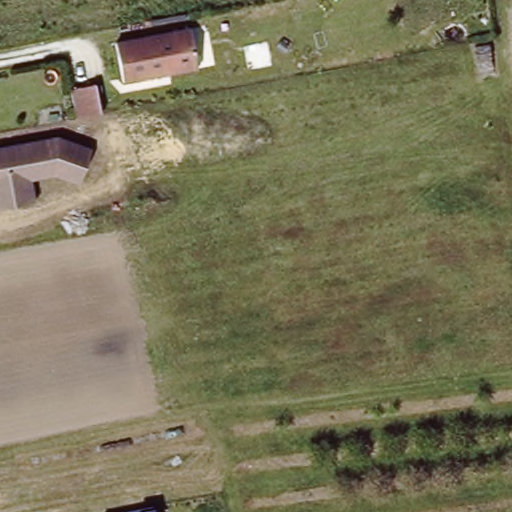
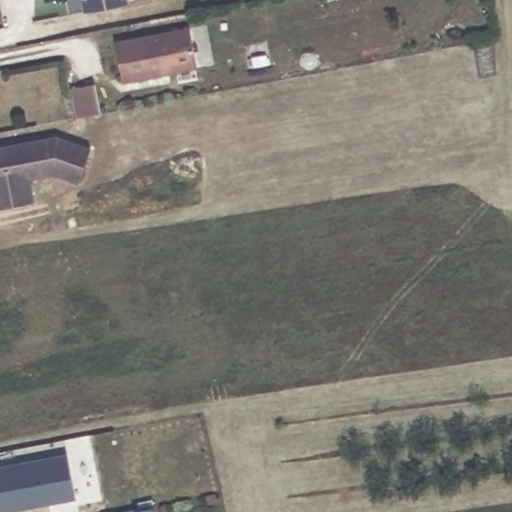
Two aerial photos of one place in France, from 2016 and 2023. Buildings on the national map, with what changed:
new [(88,12),(85,0),(130,0),(131,4),(88,12)]
unchanged [(196,62),(121,76),(113,38),(188,23),(196,62)]
unchanged [(74,118),(68,89),(93,84),(98,114),(74,118)]
unchanged [(55,136),(90,150),(76,184),(55,174),(30,180),(33,201),(0,208),(0,146),(55,136)]
new [(13,512),(0,512),(0,466),(66,452),(76,500),(13,512)]
unchanged [(152,512),(126,512),(131,511),(151,508),(152,512)]

